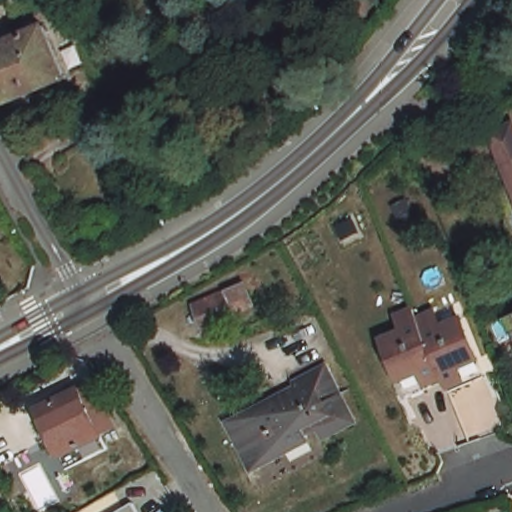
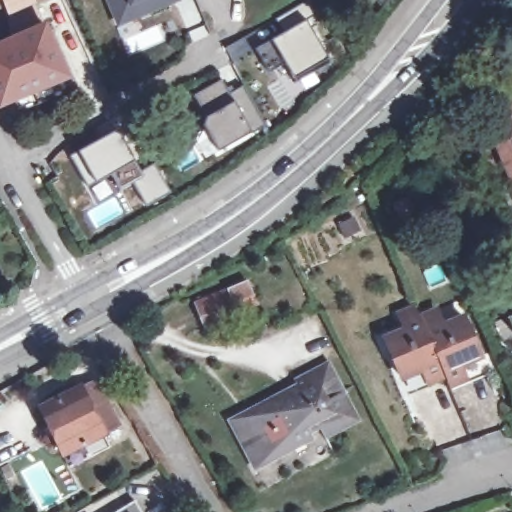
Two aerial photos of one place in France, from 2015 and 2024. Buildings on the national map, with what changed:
unchanged [(16,14),(10,0),(49,0),(16,14)]
new [(113,9),(131,1),(137,15),(167,2),(167,0),(181,0),(181,1),(116,28),(105,0),(109,0),(113,9)]
new [(167,2),(137,15),(131,1),(113,9),(109,0),(167,0),(167,2)]
new [(273,40),(285,32),(277,17),(310,0),(317,14),(306,20),(327,59),(330,64),(295,84),(292,78),(284,63),(268,72),(256,49),(273,40)]
unchanged [(0,105),(0,45),(46,25),(67,76),(0,105)]
new [(222,81),(229,95),(243,89),(264,124),(250,131),(250,132),(217,151),(203,125),(205,117),(193,95),(222,81)]
unchanged [(487,133),(509,124),(512,130),(512,193),(487,133)]
new [(155,165),(170,192),(147,205),(134,181),(120,189),(112,174),(88,186),(71,155),(118,130),(140,172),(155,165)]
unchanged [(240,317),(242,321),(210,335),(199,306),(252,286),(260,310),(240,317)]
unchanged [(383,337),(404,328),(398,314),(414,306),(415,305),(419,316),(435,309),(442,325),(462,316),(479,356),(485,375),(450,390),(449,390),(445,380),(407,395),(383,337)]
unchanged [(507,316),(512,314),(512,330),(507,316)]
unchanged [(326,367),(352,418),(322,433),(317,423),(305,430),(309,436),(253,465),(232,423),(280,398),(290,392),(295,382),(326,367)]
unchanged [(64,462),(57,449),(35,402),(77,382),(77,384),(92,377),(113,421),(99,428),(106,443),(64,462)]
unchanged [(141,512),(118,512),(135,502),(141,512)]

